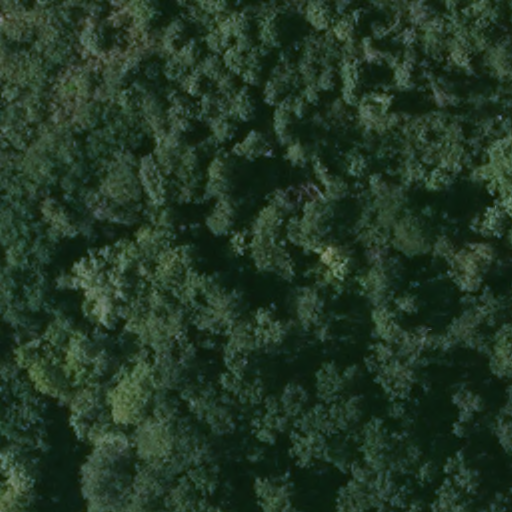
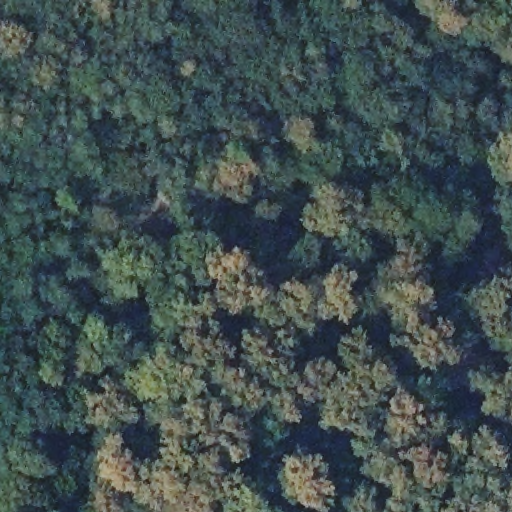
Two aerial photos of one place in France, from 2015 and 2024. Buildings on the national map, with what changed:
[]

